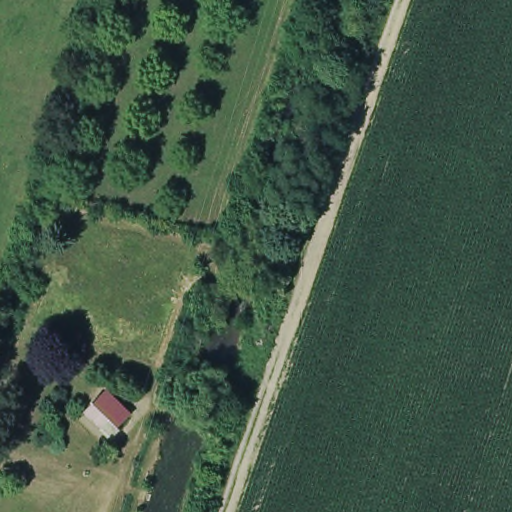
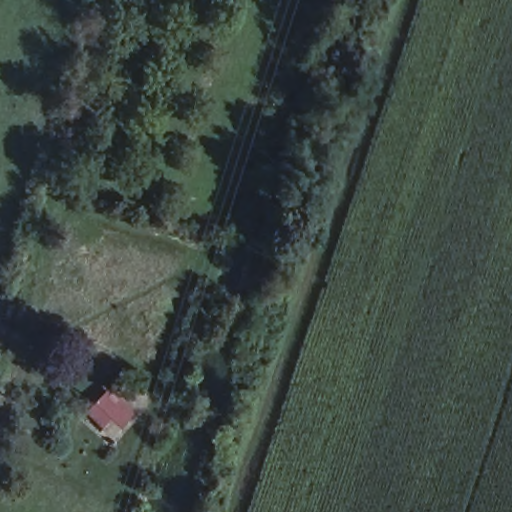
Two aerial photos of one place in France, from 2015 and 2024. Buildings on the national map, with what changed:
unchanged [(82,414),(90,406),(103,392),(130,418),(120,429),(109,421),(100,432),(82,414)]

